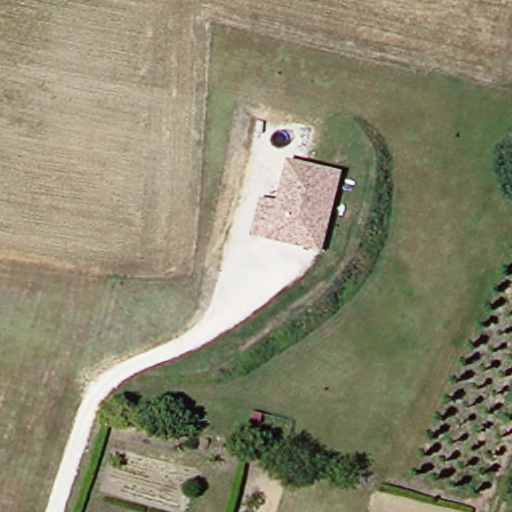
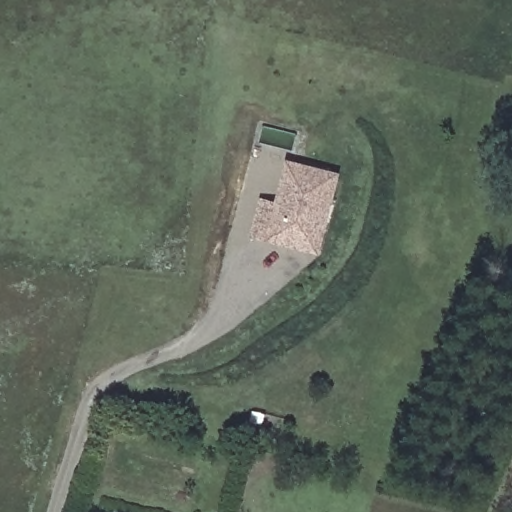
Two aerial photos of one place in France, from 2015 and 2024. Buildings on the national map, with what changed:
unchanged [(315,248),(257,234),(265,198),(282,202),(291,160),(342,172),(332,216),(325,250),(315,248)]

